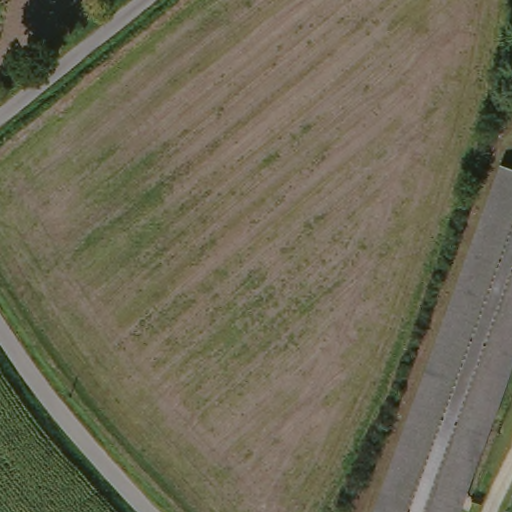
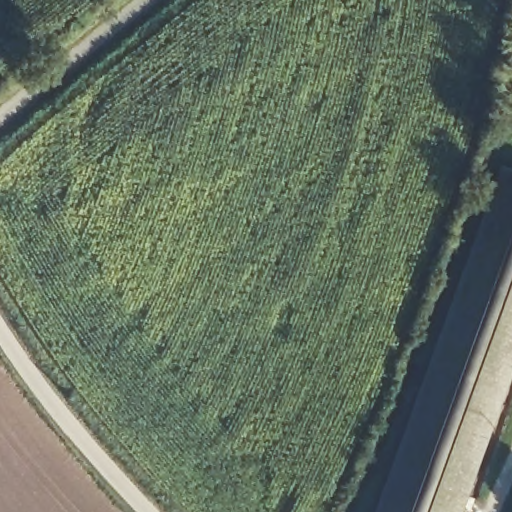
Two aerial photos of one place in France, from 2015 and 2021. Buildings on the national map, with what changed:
unchanged [(456,512),(371,512),(504,166),(512,169),(512,363),(456,512)]

